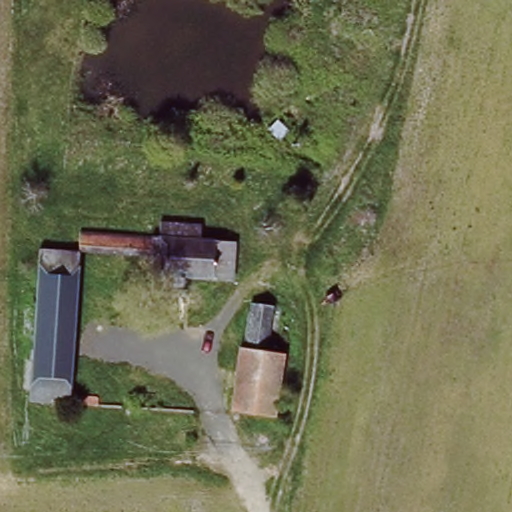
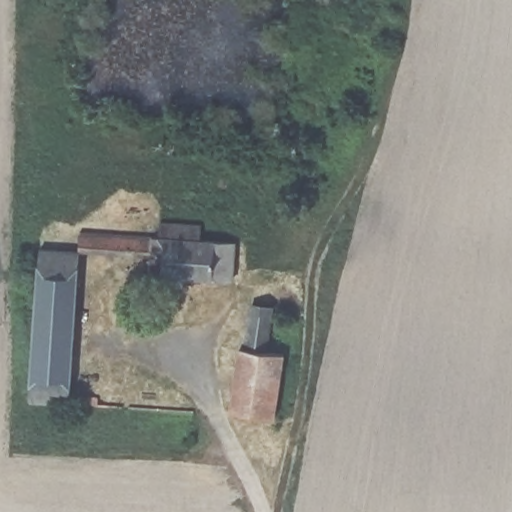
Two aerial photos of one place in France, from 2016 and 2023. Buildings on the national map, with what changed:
unchanged [(313,117),(300,134),(282,120),(295,104),(313,117)]
unchanged [(216,238),(230,239),(228,275),(149,274),(149,255),(81,254),(82,231),(148,235),(148,225),(197,226),(197,237),(216,238)]
unchanged [(80,270),(72,386),(102,388),(100,408),(33,402),(42,270),(80,270)]
unchanged [(281,307),(275,350),(284,350),(273,418),(229,411),(240,342),(252,344),(258,304),(281,307)]

